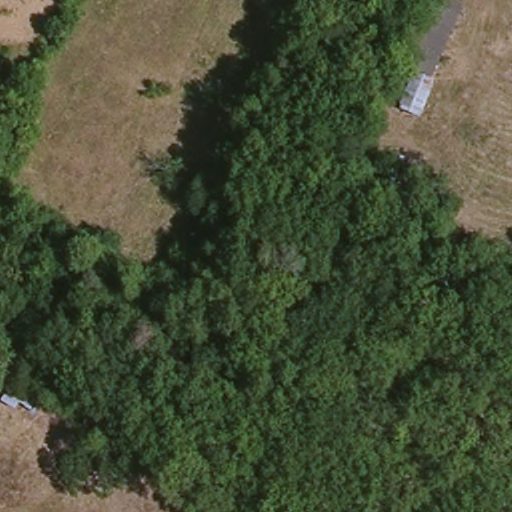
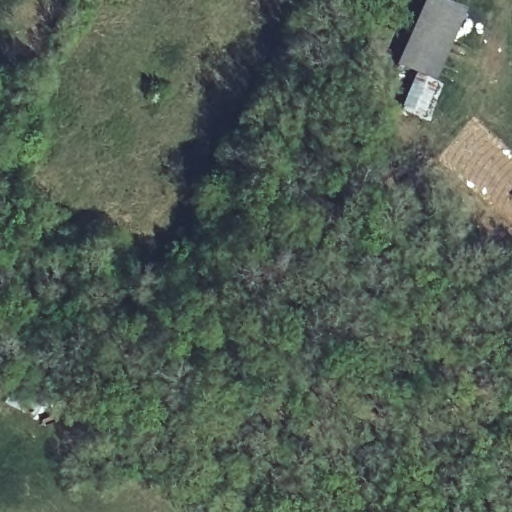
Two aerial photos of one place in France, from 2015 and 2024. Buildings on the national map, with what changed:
new [(435,81),(443,85),(430,123),(400,110),(415,73),(397,66),(425,0),(448,0),(447,1),(466,8),(435,81)]

